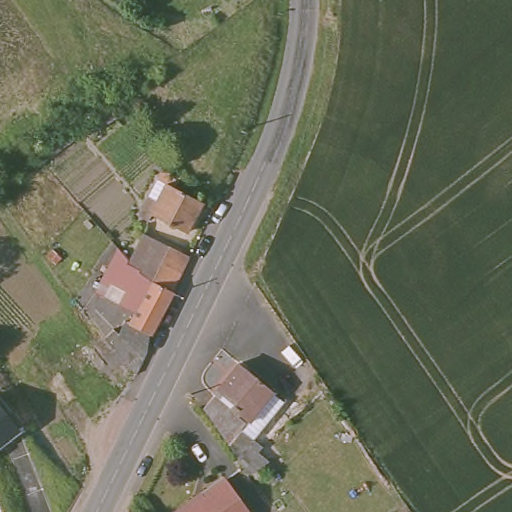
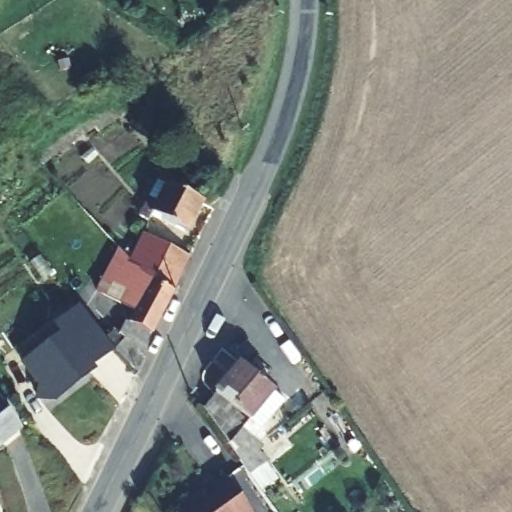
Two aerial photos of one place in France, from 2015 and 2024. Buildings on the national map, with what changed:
unchanged [(178,176),(175,191),(207,208),(189,242),(142,219),(163,170),(178,176)]
unchanged [(137,236),(190,258),(157,342),(123,329),(135,299),(98,284),(110,253),(127,261),(137,236)]
new [(58,335),(52,326),(77,308),(108,350),(85,368),(87,372),(72,383),(68,379),(57,387),(61,392),(50,399),(35,397),(36,384),(20,363),(58,335)]
unchanged [(212,391),(210,389),(235,360),(278,400),(251,432),(239,422),(223,439),(199,404),(212,391)]
unchanged [(15,433),(0,446),(0,417),(15,433)]
unchanged [(234,454),(249,444),(262,460),(246,471),(234,454)]
unchanged [(249,512),(178,512),(177,511),(227,472),(255,508),(249,512)]

